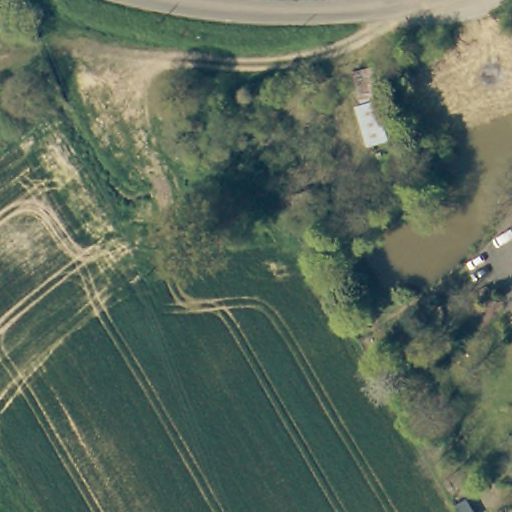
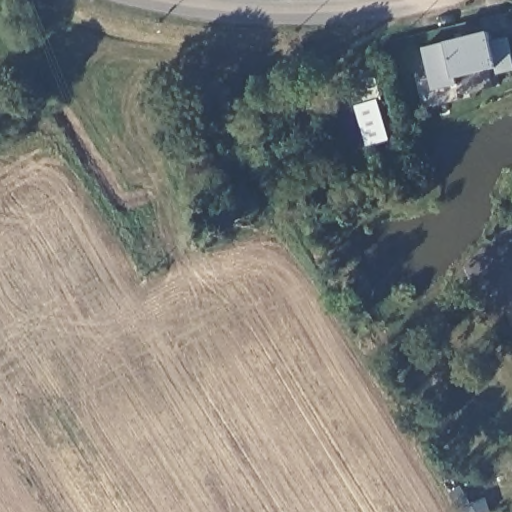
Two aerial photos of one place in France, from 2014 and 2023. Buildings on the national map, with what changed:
new [(488,32),(491,42),(508,37),(512,53),(512,72),(490,77),(488,70),(457,78),(458,86),(432,93),(421,47),(445,44),(488,32)]
unchanged [(351,109),(356,107),(348,74),(368,69),(377,103),(373,104),(382,140),(360,146),(351,109)]

